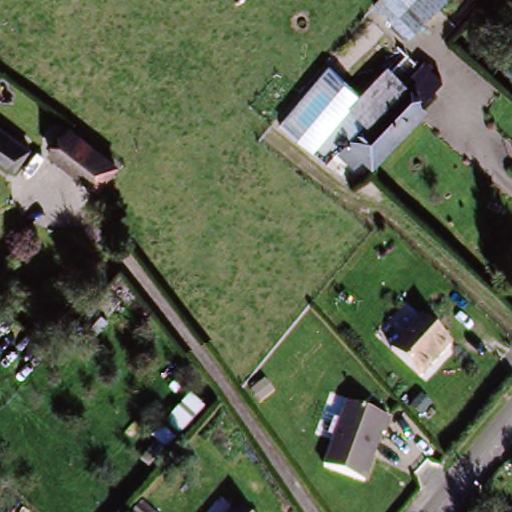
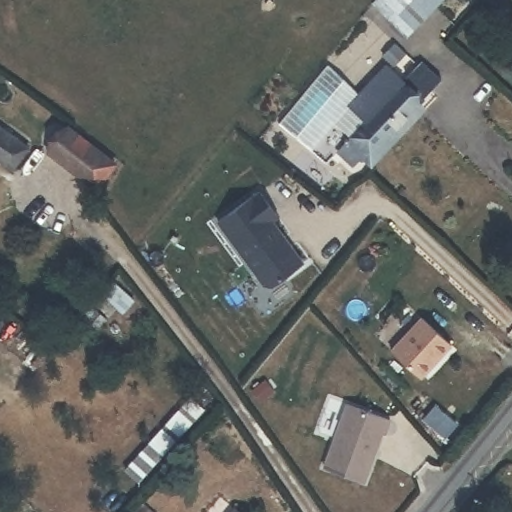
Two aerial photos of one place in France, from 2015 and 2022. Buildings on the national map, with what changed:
unchanged [(443,0),(410,34),(378,5),(382,0),(443,0)]
unchanged [(346,133),(331,121),(307,146),(276,116),(328,61),(374,104),(406,68),(412,60),(407,56),(410,51),(415,55),(433,71),(424,84),(417,98),(428,114),(373,170),(359,145),(349,158),(335,145),(346,133)]
unchanged [(98,185),(88,177),(53,150),(68,130),(103,156),(113,165),(98,185)]
unchanged [(23,150),(8,172),(0,165),(0,132),(23,150)]
new [(251,196),(252,198),(259,193),(276,217),(270,221),(302,264),(271,287),(264,286),(216,223),(251,196)]
unchanged [(393,347),(426,316),(451,344),(418,374),(393,347)]
unchanged [(429,407),(420,417),(409,408),(419,398),(429,407)]
unchanged [(330,464),(349,403),(393,416),(379,444),(368,477),(330,464)]
unchanged [(156,512),(129,512),(128,511),(140,498),(156,512)]
unchanged [(238,507),(242,512),(233,512),(238,507)]

